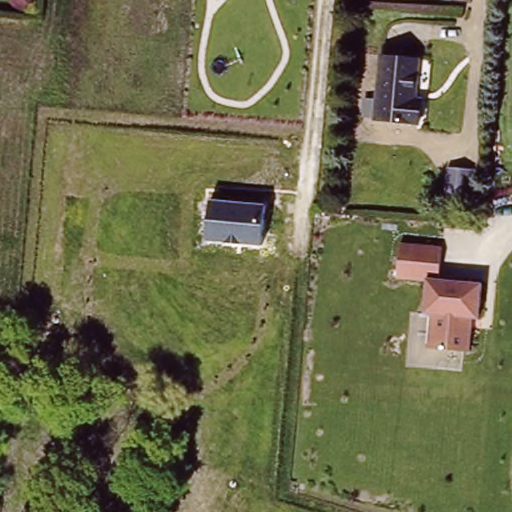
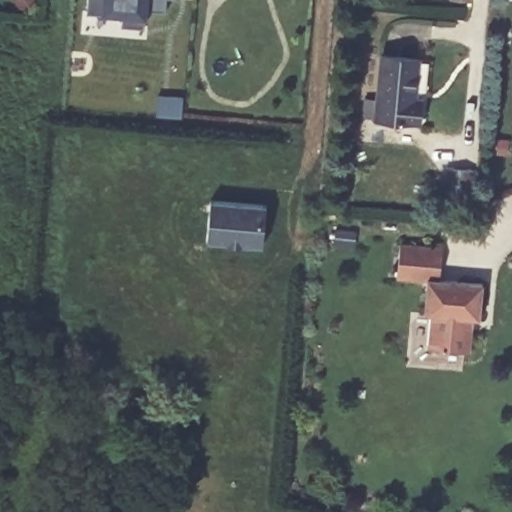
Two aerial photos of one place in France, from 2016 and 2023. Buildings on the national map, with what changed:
new [(146,9),(145,17),(144,27),(122,25),(123,15),(101,15),(81,14),(83,0),(163,0),(163,10),(146,9)]
unchanged [(419,52),(416,92),(422,92),(420,116),(374,114),(379,50),(419,52)]
unchanged [(467,167),(465,194),(443,192),(446,165),(467,167)]
unchanged [(265,204),(261,249),(205,244),(209,200),(265,204)]
unchanged [(442,248),(441,277),(480,282),(477,321),(471,320),(468,353),(425,346),(427,313),(418,312),(421,283),(393,278),(396,244),(442,248)]

